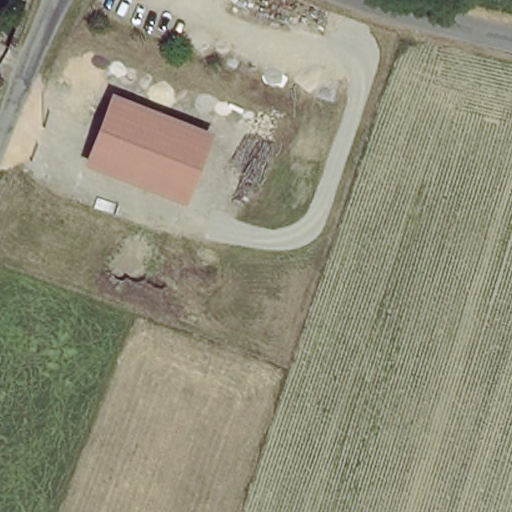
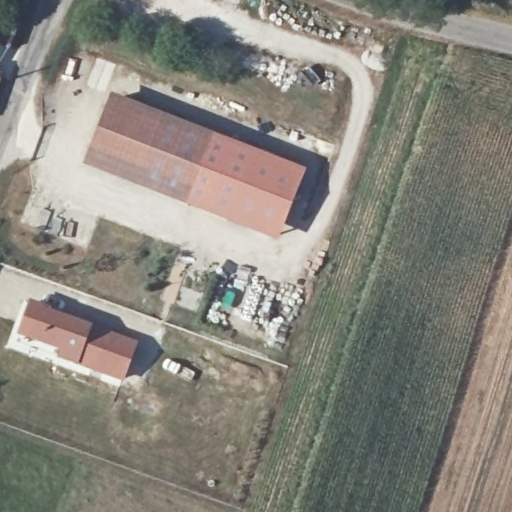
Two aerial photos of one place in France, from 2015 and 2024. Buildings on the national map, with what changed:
unchanged [(188,207),(86,166),(112,94),(216,135),(188,207)]
new [(216,135),(306,170),(277,242),(188,207),(216,135)]
new [(30,300),(52,308),(52,310),(92,326),(138,342),(123,382),(76,366),(57,358),(59,352),(17,337),(30,300)]

